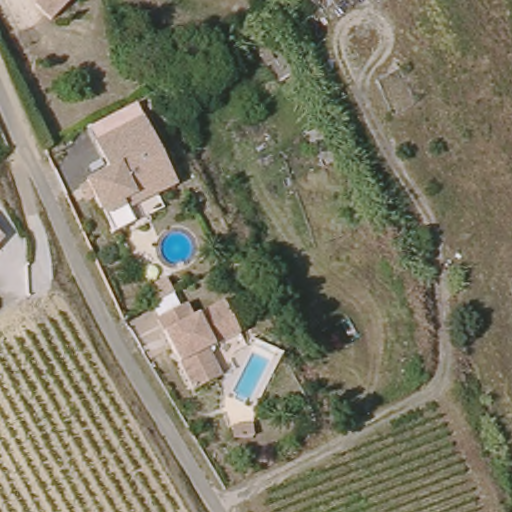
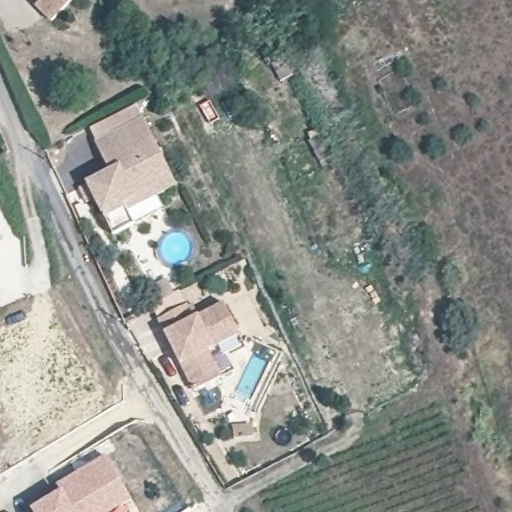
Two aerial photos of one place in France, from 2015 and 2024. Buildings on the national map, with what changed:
unchanged [(51,18),(37,1),(39,0),(73,0),(51,18)]
unchanged [(178,187),(158,195),(165,210),(149,217),(152,226),(136,234),(133,225),(113,234),(87,182),(110,170),(98,141),(145,118),(178,187)]
unchanged [(0,245),(0,236),(5,240),(0,245)]
unchanged [(224,381),(197,394),(159,321),(188,307),(193,320),(226,305),(243,337),(210,354),(224,381)]
new [(63,491),(58,485),(106,458),(132,498),(109,512),(34,512),(33,508),(63,491)]

